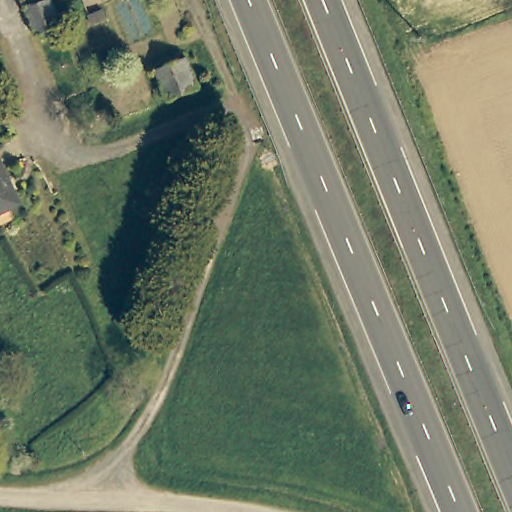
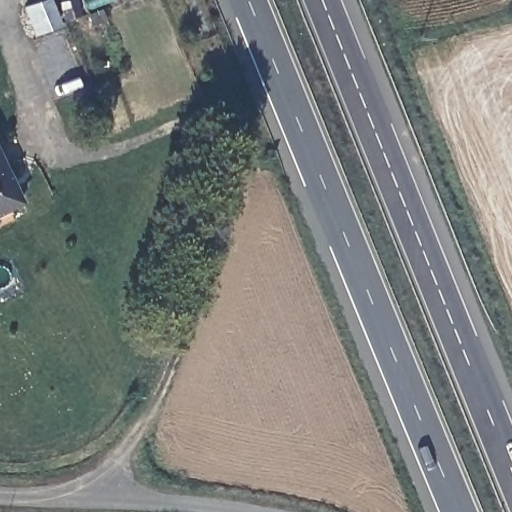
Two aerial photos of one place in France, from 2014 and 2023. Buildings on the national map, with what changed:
unchanged [(20,5),(30,0),(34,8),(50,1),(60,25),(33,36),(20,5)]
unchanged [(156,104),(151,94),(155,91),(153,83),(160,80),(156,69),(185,57),(197,88),(156,104)]
unchanged [(0,212),(0,175),(14,205),(0,212)]

